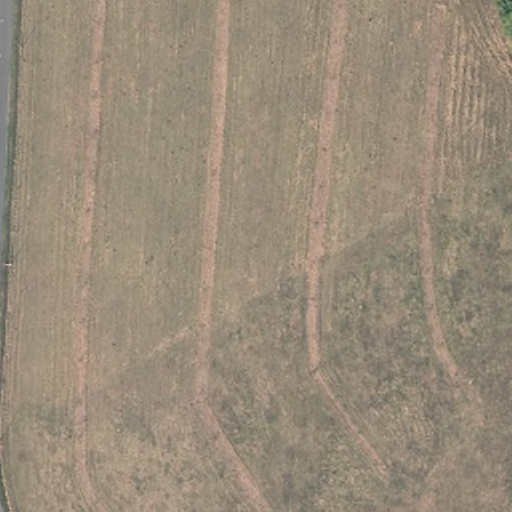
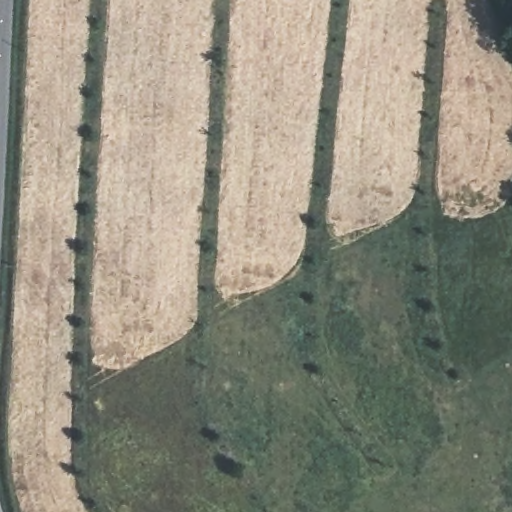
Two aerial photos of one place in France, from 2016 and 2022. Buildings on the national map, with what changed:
[]

